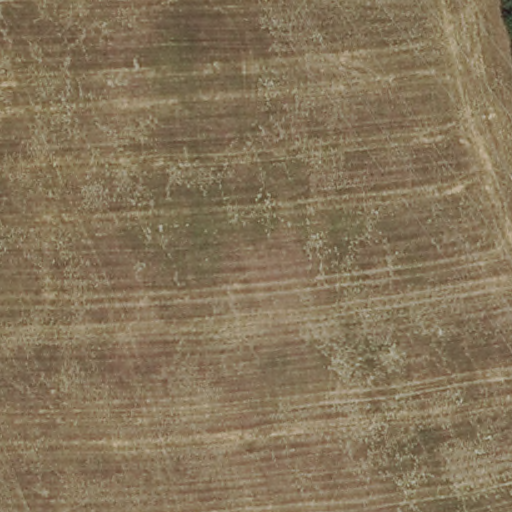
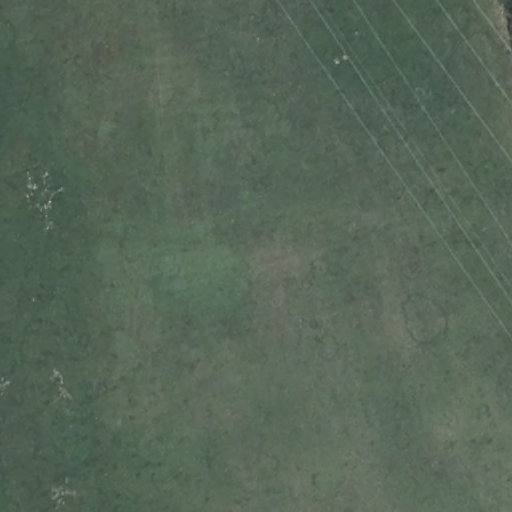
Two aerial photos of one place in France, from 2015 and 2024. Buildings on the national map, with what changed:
[]

